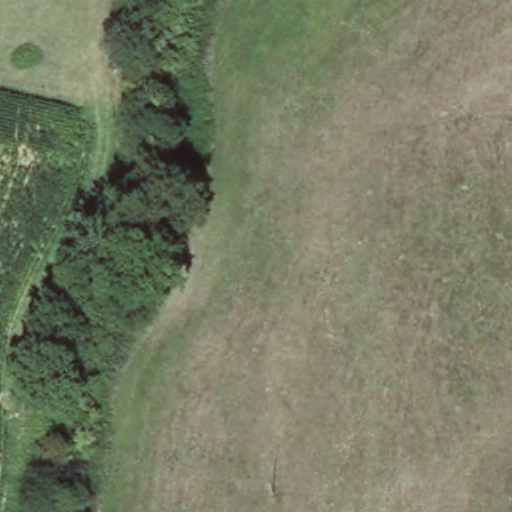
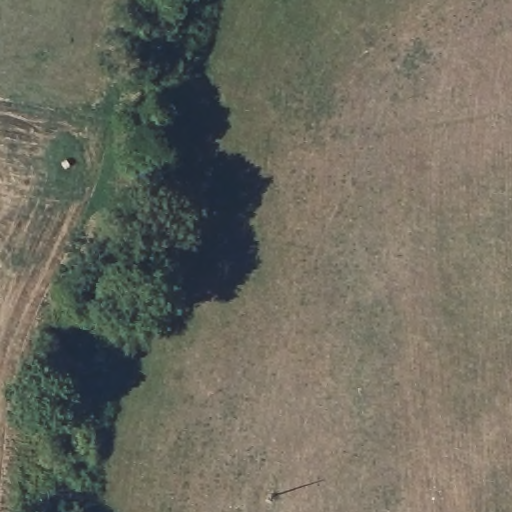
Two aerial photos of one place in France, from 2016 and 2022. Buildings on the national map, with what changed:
[]

